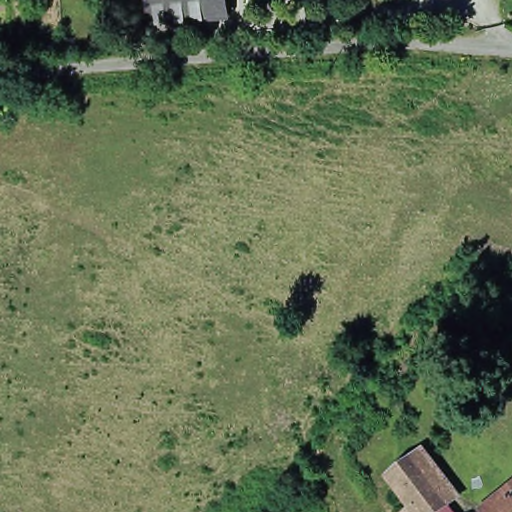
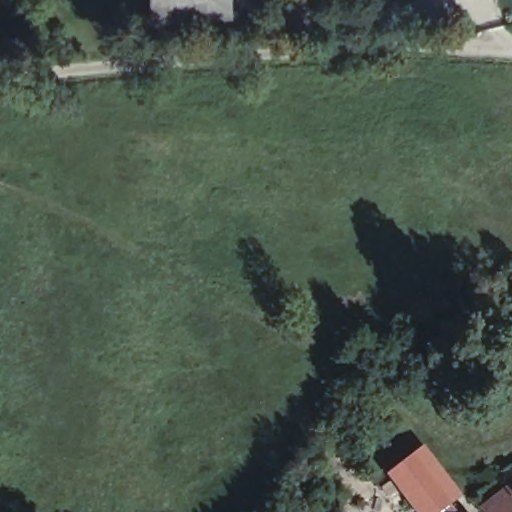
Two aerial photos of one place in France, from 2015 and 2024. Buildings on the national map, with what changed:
unchanged [(156,0),(233,0),(234,15),(158,21),(156,0)]
unchanged [(396,474),(421,454),(458,497),(440,512),(409,512),(403,504),(412,495),(396,474)]
unchanged [(512,491),(512,512),(491,512),(489,509),(512,491)]

